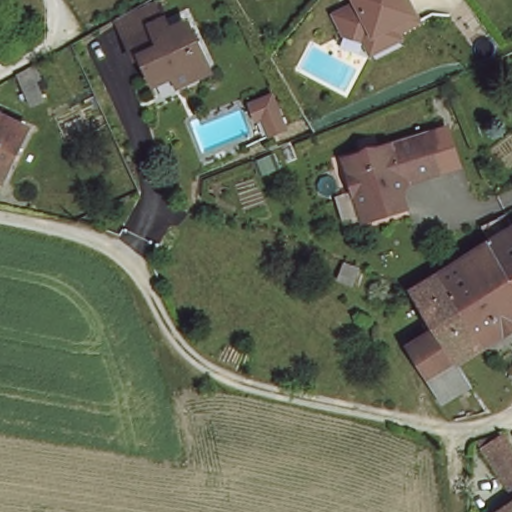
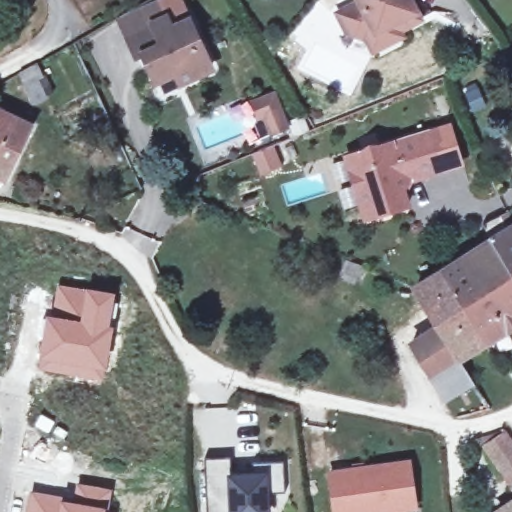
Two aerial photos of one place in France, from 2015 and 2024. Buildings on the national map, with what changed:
unchanged [(360,27),(340,22),(330,2),(335,0),(410,0),(415,9),(392,20),(395,26),(367,41),(360,27)]
unchanged [(167,27),(185,20),(207,66),(179,80),(172,68),(152,77),(140,53),(135,56),(125,34),(162,17),(167,27)]
demolished [(39,66),(53,101),(34,109),(20,76),(39,66)]
unchanged [(270,136),(260,109),(250,112),(244,95),(276,81),(290,125),(270,136)]
unchanged [(0,113),(30,126),(7,180),(0,176),(0,113)]
unchanged [(357,196),(340,155),(385,137),(386,140),(424,126),(437,157),(407,171),(400,185),(405,197),(388,204),(364,214),(357,196)]
unchanged [(476,237),(465,222),(487,211),(497,227),(512,218),(512,250),(492,262),(476,237)]
unchanged [(424,270),(476,237),(492,262),(512,293),(512,315),(472,340),(424,270)]
unchanged [(492,262),(512,250),(512,293),(492,262)]
unchanged [(396,342),(422,327),(398,287),(424,270),(472,340),(445,357),(416,373),(396,342)]
new [(48,314),(52,315),(57,283),(117,292),(112,336),(105,381),(39,369),(48,314)]
unchanged [(445,357),(477,407),(442,415),(416,373),(445,357)]
unchanged [(512,450),(512,497),(508,500),(476,448),(501,432),(512,450)]
new [(230,478),(252,477),(251,465),(282,463),(285,495),(265,496),(266,512),(205,512),(203,461),(230,459),(230,478)]
new [(408,463),(415,508),(390,512),(334,512),(329,475),(408,463)]
new [(72,500),(76,482),(112,488),(107,512),(26,512),(30,490),(72,500)]
unchanged [(512,497),(512,512),(488,512),(508,500),(512,497)]

